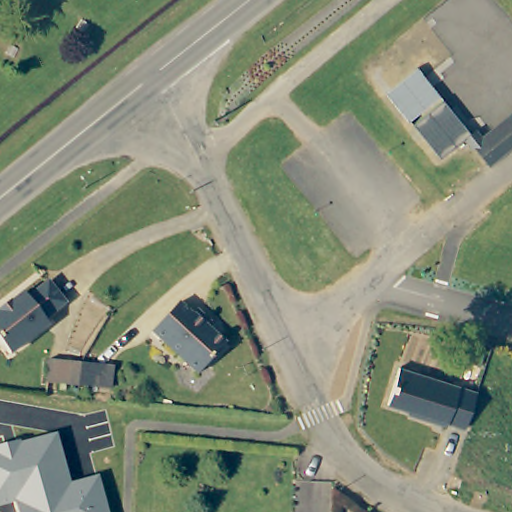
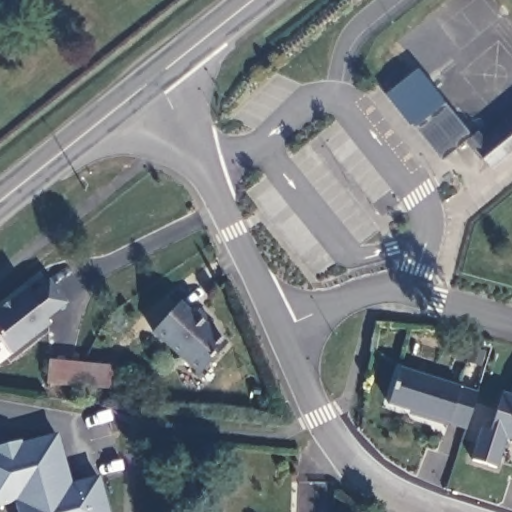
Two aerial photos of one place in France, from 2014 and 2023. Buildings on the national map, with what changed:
unchanged [(411,122),(386,94),(418,69),(442,97),(411,122)]
unchanged [(489,168),(465,139),(440,159),(412,127),(444,102),(470,134),(477,128),(482,135),(512,112),(512,150),(489,168)]
unchanged [(10,300),(22,290),(26,295),(47,279),(62,300),(42,316),(46,321),(7,351),(0,342),(0,303),(7,297),(10,300)]
unchanged [(221,342),(194,371),(149,329),(175,300),(188,312),(192,308),(206,321),(202,325),(221,342)]
unchanged [(72,367),(111,375),(107,396),(71,390),(41,383),(45,362),(72,367)]
unchanged [(467,430),(448,424),(447,426),(406,414),(406,411),(387,405),(401,367),(478,391),(467,430)]
new [(505,440),(496,468),(471,460),(480,427),(490,430),(501,391),(510,395),(512,388),(512,441),(505,440)]
unchanged [(17,512),(15,503),(0,507),(0,446),(22,440),(22,442),(57,433),(72,482),(100,475),(109,512),(17,512)]

